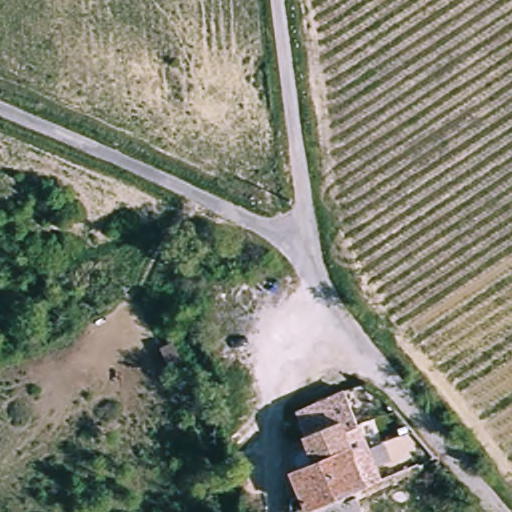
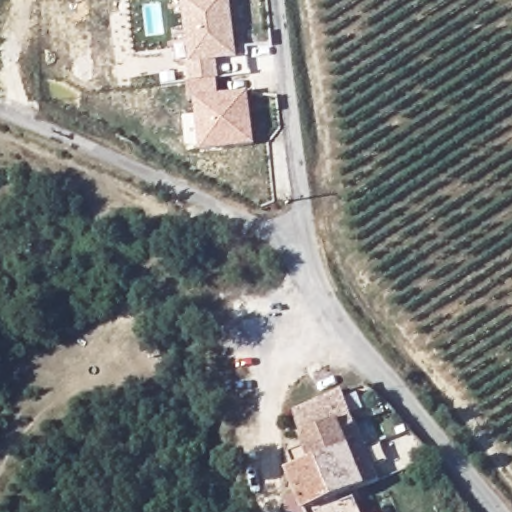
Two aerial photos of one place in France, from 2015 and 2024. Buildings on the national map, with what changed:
new [(249,92),(256,145),(201,152),(196,101),(190,101),(188,84),(192,83),(188,62),(190,61),(183,0),(231,0),(238,58),(217,60),(220,78),(217,79),(219,95),(249,92)]
unchanged [(337,391),(380,485),(346,500),(351,512),(289,512),(289,506),(303,499),(290,469),(313,460),(293,409),(337,391)]

